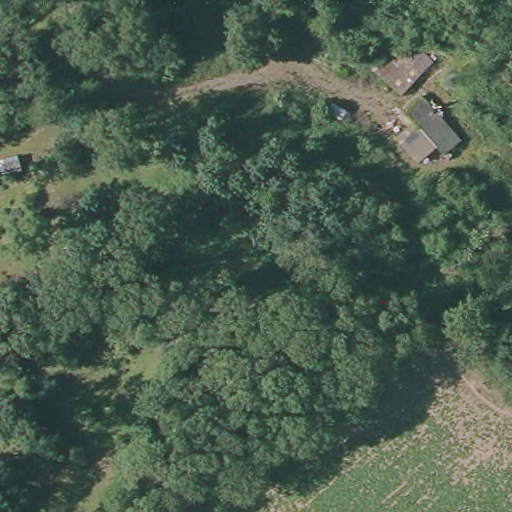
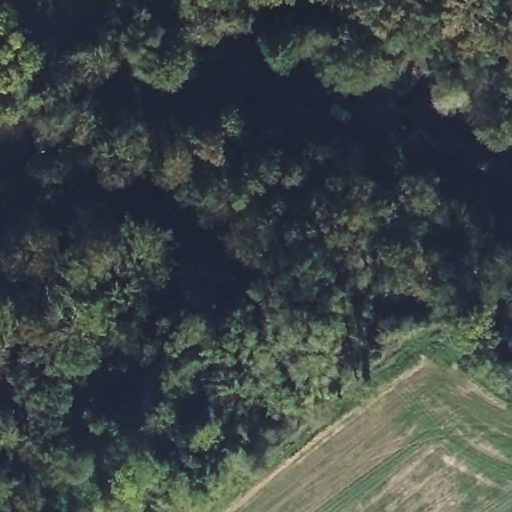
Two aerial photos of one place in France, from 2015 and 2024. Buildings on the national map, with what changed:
unchanged [(448,159),(438,149),(415,168),(394,143),(410,125),(399,114),(416,95),(461,141),(448,159)]

